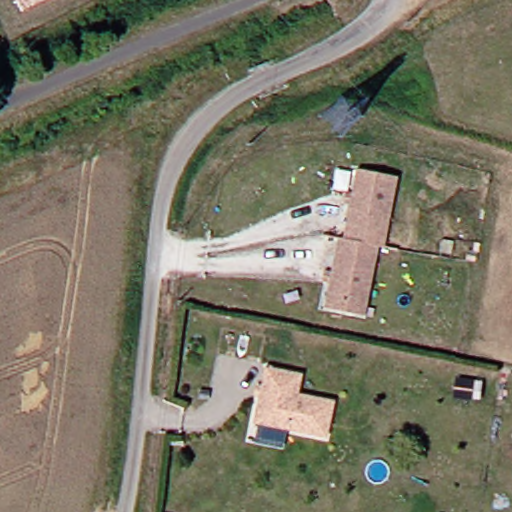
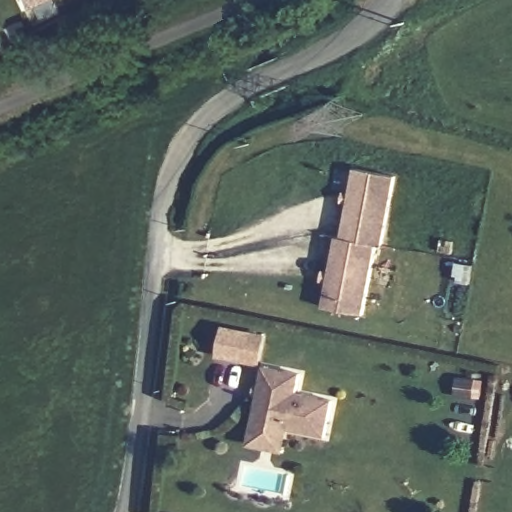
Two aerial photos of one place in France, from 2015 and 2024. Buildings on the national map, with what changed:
unchanged [(43,0),(21,10),(17,0),(43,0)]
unchanged [(360,166),(400,174),(387,243),(381,242),(348,236),(360,166)]
unchanged [(369,311),(329,305),(342,235),(348,236),(381,242),(369,311)]
new [(267,335),(261,365),(217,356),(223,326),(267,335)]
unchanged [(303,371),(299,390),(335,398),(328,434),(256,419),(268,363),(303,371)]

